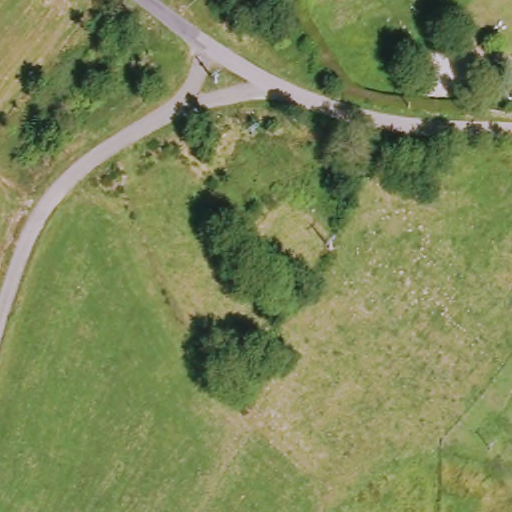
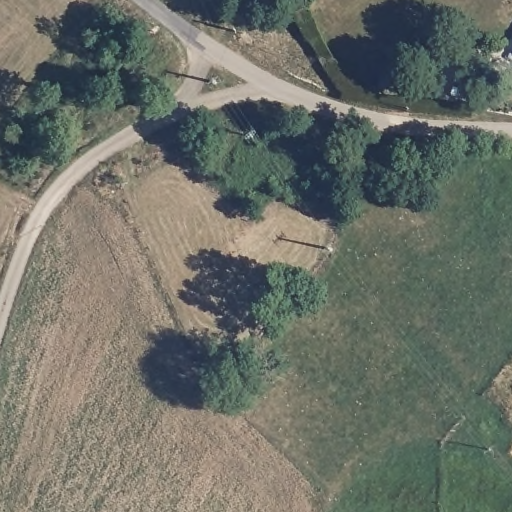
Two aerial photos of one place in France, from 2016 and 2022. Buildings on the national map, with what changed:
unchanged [(179,48),(176,55),(168,51),(173,45),(179,48)]

